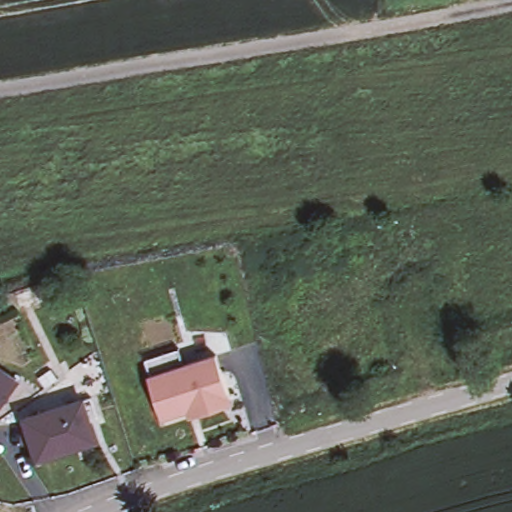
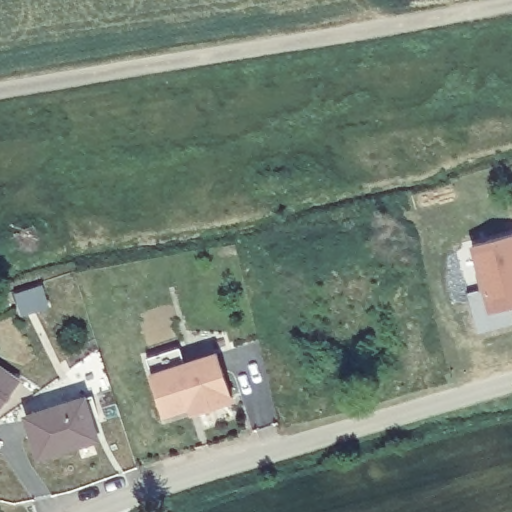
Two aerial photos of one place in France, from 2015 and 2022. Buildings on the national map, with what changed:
new [(512,307),(488,314),(471,246),(512,235),(512,307)]
unchanged [(186,406),(159,415),(146,375),(213,353),(228,400),(194,411),(188,413),(186,406)]
unchanged [(20,383),(0,411),(0,369),(20,383)]
unchanged [(84,398),(97,440),(40,457),(27,416),(84,398)]

